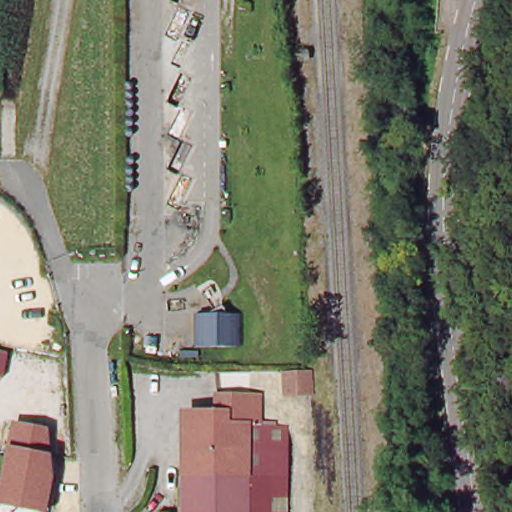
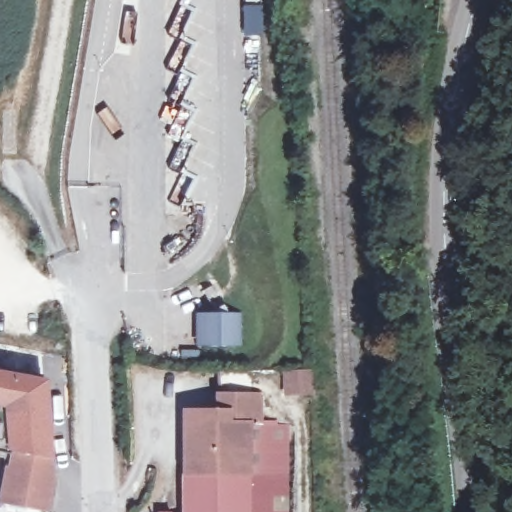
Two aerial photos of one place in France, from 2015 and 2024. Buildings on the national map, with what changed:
unchanged [(201,312),(237,312),(237,345),(201,346),(201,312)]
new [(15,456),(0,454),(0,371),(48,379),(55,455),(17,448),(15,456)]
unchanged [(316,371),(316,398),(288,397),(286,372),(316,371)]
unchanged [(217,426),(217,400),(218,400),(217,387),(216,374),(248,374),(251,396),(253,400),(259,400),(259,429),(248,429),(248,477),(183,477),(183,426),(217,426)]
unchanged [(248,429),(259,429),(288,431),(287,478),(287,512),(248,512),(248,477),(248,429)]
unchanged [(57,479),(53,503),(51,512),(5,512),(17,448),(55,455),(57,479)]
unchanged [(183,477),(248,477),(248,512),(183,512),(183,481),(183,477)]

